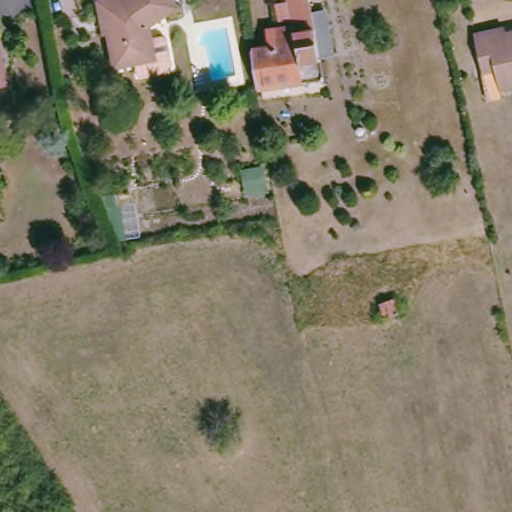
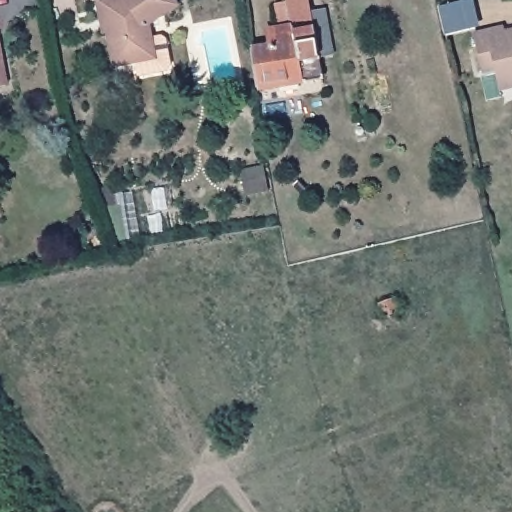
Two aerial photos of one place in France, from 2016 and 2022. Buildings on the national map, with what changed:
unchanged [(176,9),(148,26),(138,29),(140,42),(156,39),(161,42),(167,68),(163,74),(133,80),(131,64),(110,68),(100,20),(95,21),(90,0),(170,0),(176,9)]
unchanged [(325,75),(262,88),(255,45),(272,41),(270,27),(295,22),(291,0),(310,0),(325,75)]
unchanged [(512,32),(512,76),(498,68),(487,69),(480,33),(510,26),(511,32),(512,32)]
unchanged [(14,83),(2,86),(0,86),(0,39),(5,38),(14,83)]
unchanged [(242,187),(265,183),(265,187),(243,192),(242,187)]
unchanged [(395,311),(385,316),(380,304),(390,301),(395,311)]

